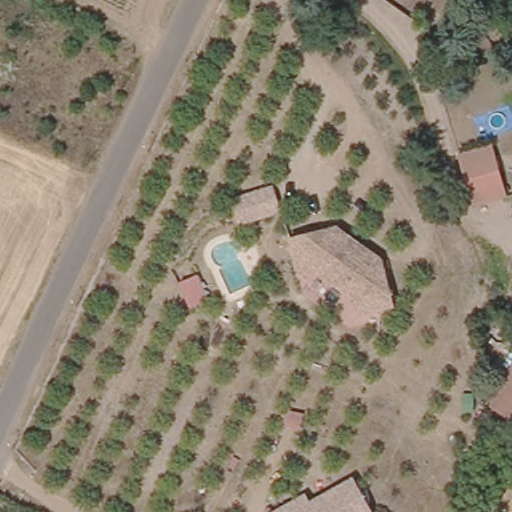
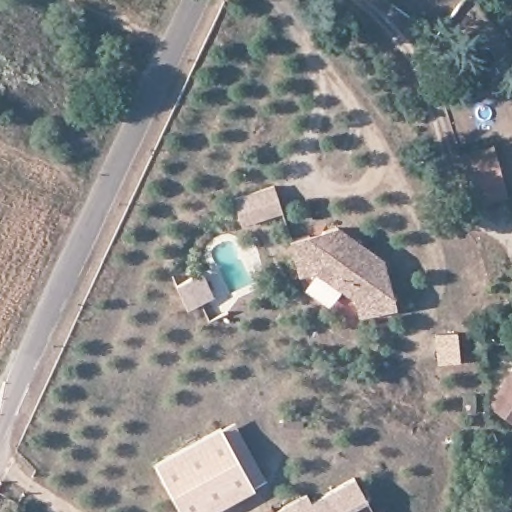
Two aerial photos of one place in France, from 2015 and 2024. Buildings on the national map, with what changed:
unchanged [(512,186),(512,199),(478,209),(460,148),(498,137),(512,186)]
unchanged [(280,219),(239,228),(232,198),(274,189),(280,219)]
unchanged [(393,302),(361,310),(357,297),(310,266),(293,267),(286,237),(335,229),(383,261),(393,302)]
new [(201,275),(213,303),(191,312),(180,284),(201,275)]
unchanged [(498,383),(512,361),(512,404),(503,416),(493,410),(503,395),(494,388),(498,383)]
new [(233,421),(267,480),(211,512),(181,512),(155,463),(233,421)]
unchanged [(368,512),(273,512),(307,494),(310,501),(353,480),(368,512)]

